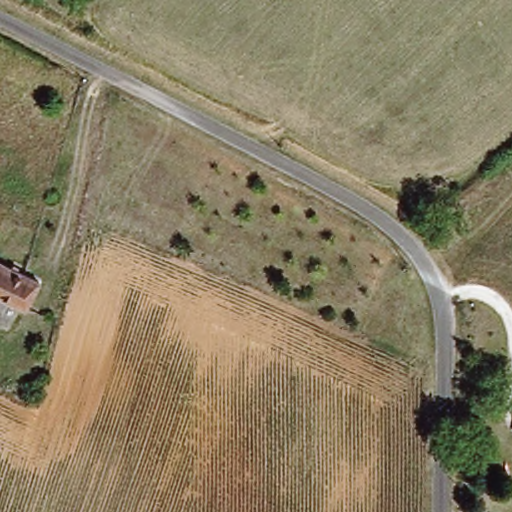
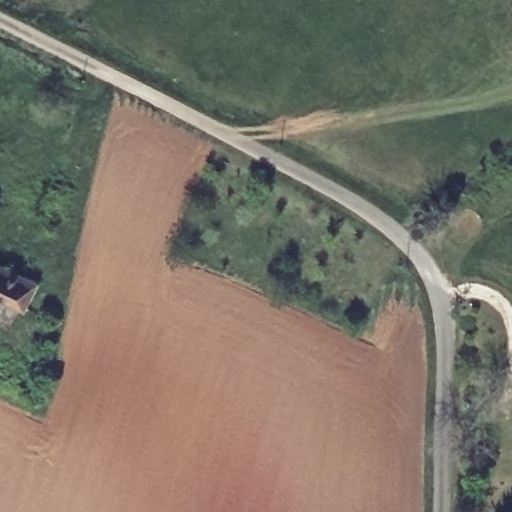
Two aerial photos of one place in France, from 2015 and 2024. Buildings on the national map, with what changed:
unchanged [(47,284),(32,310),(0,292),(0,259),(47,284)]

